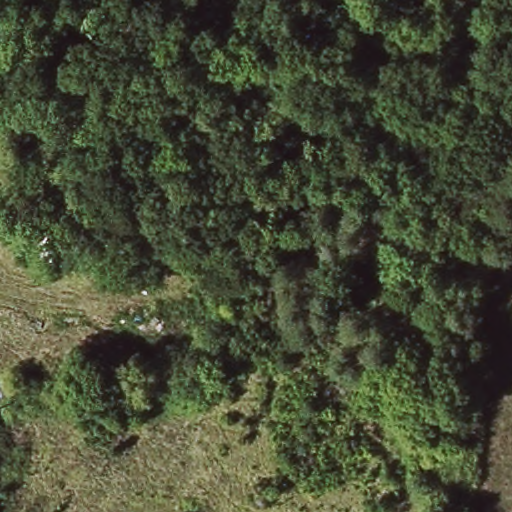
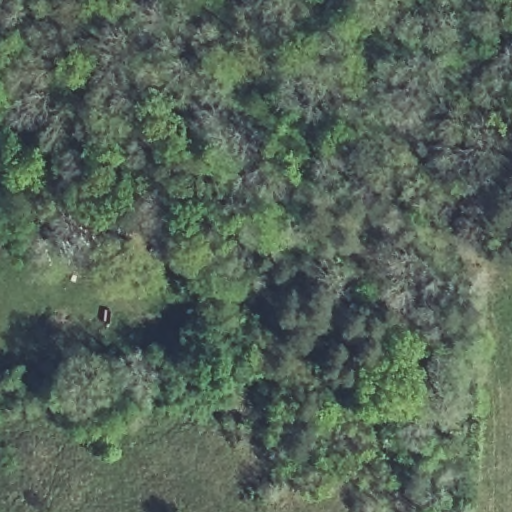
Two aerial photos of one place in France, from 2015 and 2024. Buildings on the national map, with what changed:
[]

